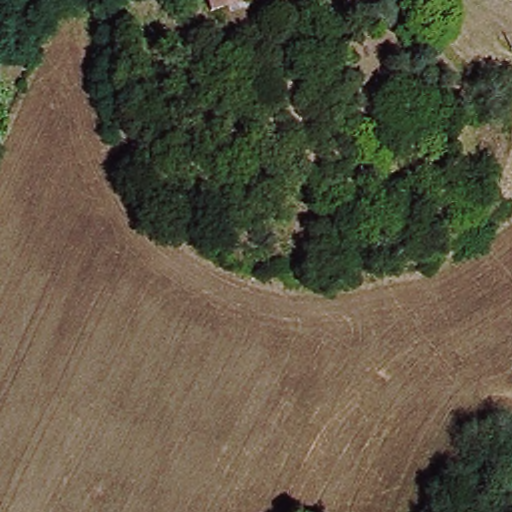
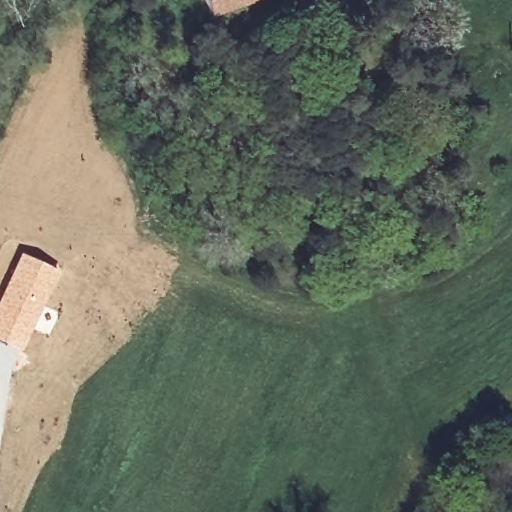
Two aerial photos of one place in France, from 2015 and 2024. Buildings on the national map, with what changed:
unchanged [(209,0),(259,0),(215,15),(209,0)]
new [(60,271),(20,349),(0,339),(0,295),(20,251),(60,271)]

